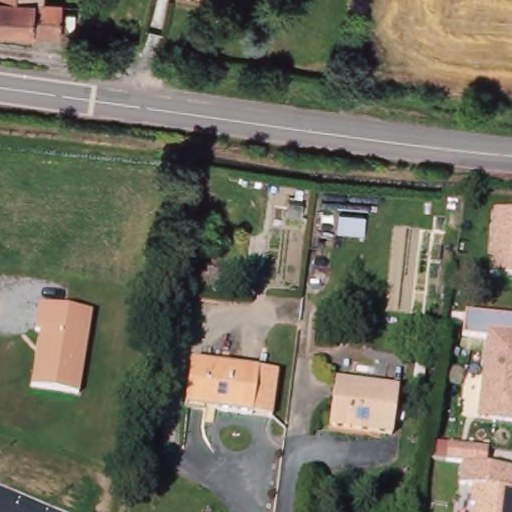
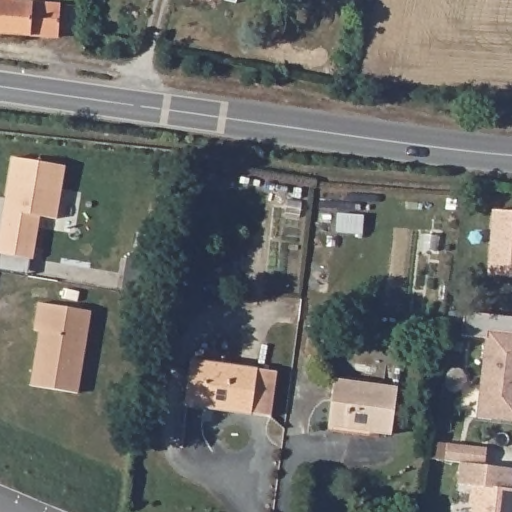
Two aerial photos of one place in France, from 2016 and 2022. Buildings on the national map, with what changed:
unchanged [(63,34),(0,30),(0,0),(48,0),(47,0),(66,1),(63,34)]
new [(0,253),(0,241),(14,157),(66,166),(58,218),(41,216),(34,259),(32,259),(29,273),(0,269),(0,256),(0,253)]
unchanged [(492,208),(512,210),(512,275),(486,272),(492,208)]
unchanged [(162,300),(187,304),(180,343),(171,367),(150,360),(162,300)]
unchanged [(40,331),(34,331),(40,301),(93,312),(78,392),(31,387),(40,331)]
unchanged [(486,329),(512,332),(512,421),(491,419),(476,417),(478,401),(486,329)]
unchanged [(279,368),(274,413),(187,401),(193,357),(279,368)]
unchanged [(398,393),(392,439),(329,431),(335,385),(398,393)]
unchanged [(448,441),(488,446),(485,463),(463,460),(446,457),(448,441)]
unchanged [(512,512),(473,512),(474,504),(469,504),(471,484),(512,490),(512,512)]

